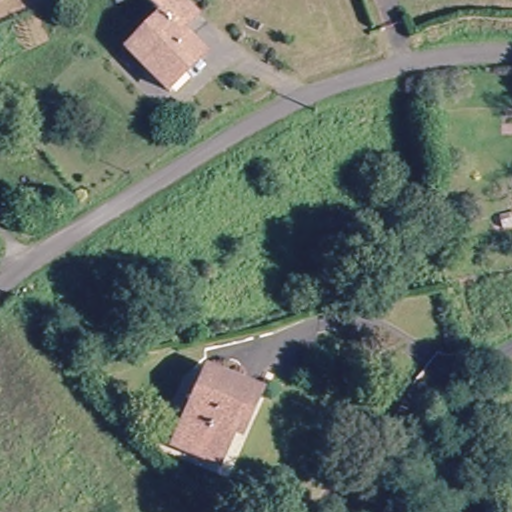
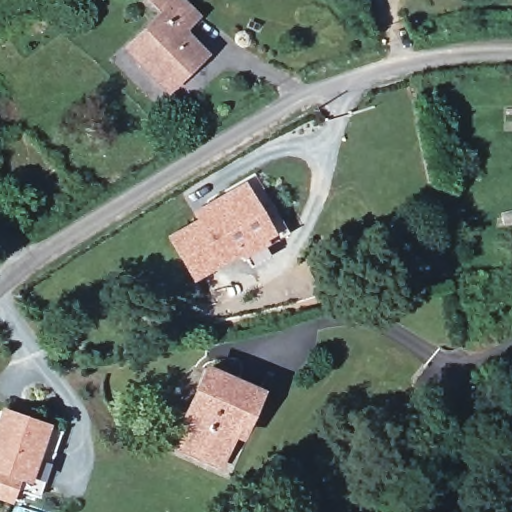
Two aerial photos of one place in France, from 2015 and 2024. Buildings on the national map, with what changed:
unchanged [(171,87),(128,44),(162,10),(152,0),(185,0),(196,11),(181,27),(202,49),(184,67),(169,82),(173,86),(171,87)]
new [(277,237),(191,280),(166,237),(197,220),(192,211),(245,182),(277,237)]
unchanged [(240,436),(233,433),(219,465),(174,446),(208,370),(257,391),(246,415),(249,416),(240,436)]
new [(0,410),(1,407),(50,424),(30,485),(19,481),(11,504),(0,500),(0,410)]

